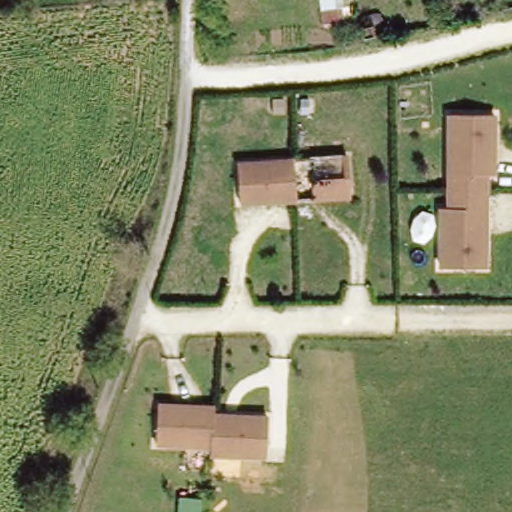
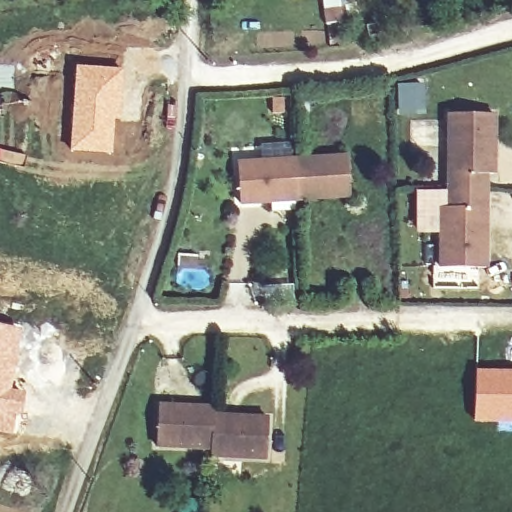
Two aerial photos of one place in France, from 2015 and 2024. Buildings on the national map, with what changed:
new [(327,24),(323,0),(355,0),(357,20),(327,24)]
new [(75,64),(122,68),(121,119),(114,119),(112,154),(69,150),(75,64)]
new [(399,84),(425,84),(425,114),(400,115),(399,84)]
unchanged [(498,113),(496,173),(489,174),(492,268),(439,268),(437,206),(445,207),(448,114),(498,113)]
unchanged [(239,198),(237,159),(347,150),(350,190),(239,198)]
new [(11,390),(24,392),(14,433),(0,430),(0,324),(22,328),(11,390)]
new [(475,367),(512,369),(512,433),(497,432),(497,423),(472,422),(475,367)]
unchanged [(210,445),(156,442),(160,401),(214,406),(214,413),(210,445)]
unchanged [(267,416),(265,456),(210,451),(210,445),(214,413),(267,416)]

